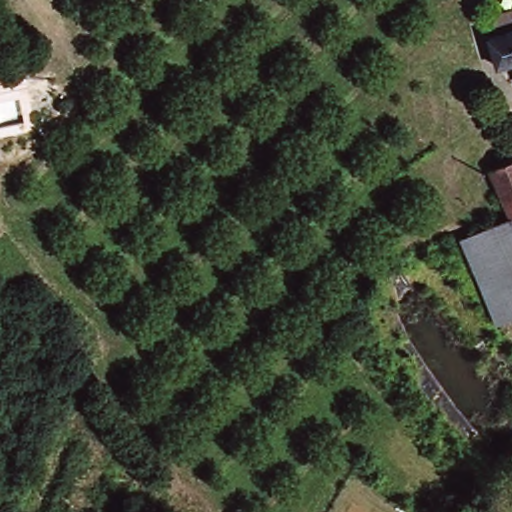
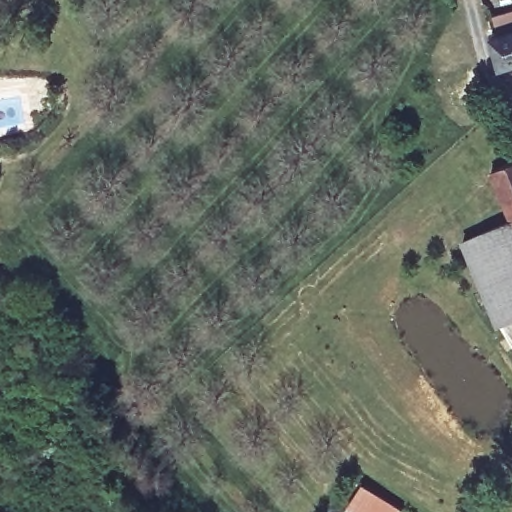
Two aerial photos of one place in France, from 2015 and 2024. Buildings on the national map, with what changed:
unchanged [(493,36),(508,31),(505,20),(501,10),(512,5),(512,66),(501,69),(493,36)]
unchanged [(490,170),(512,161),(512,317),(501,322),(463,241),(512,220),(490,170)]
new [(402,512),(354,512),(347,508),(363,483),(404,508),(402,512)]

